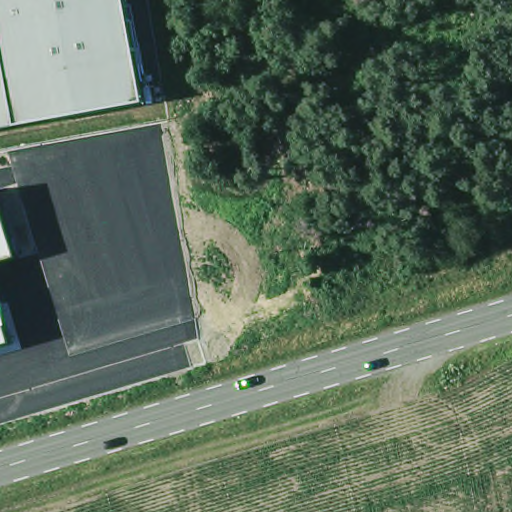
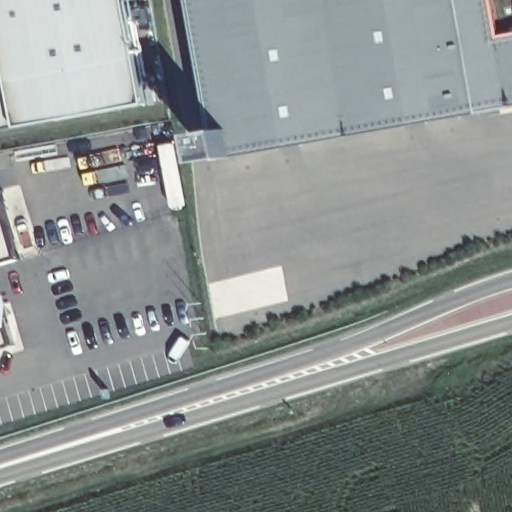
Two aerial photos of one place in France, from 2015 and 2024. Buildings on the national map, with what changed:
unchanged [(0,130),(0,0),(130,0),(148,103),(0,130)]
new [(213,133),(191,0),(512,0),(512,106),(235,154),(210,159),(207,135),(213,133)]
unchanged [(0,262),(0,197),(19,256),(0,262)]
unchanged [(0,348),(0,299),(14,344),(0,348)]

